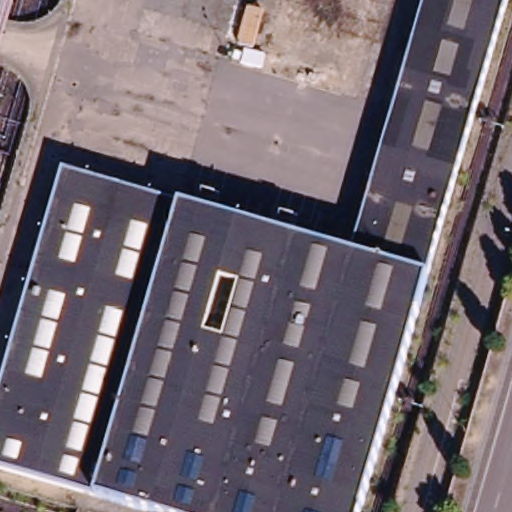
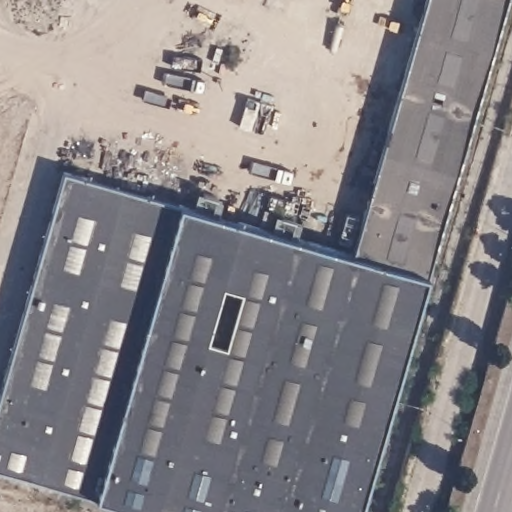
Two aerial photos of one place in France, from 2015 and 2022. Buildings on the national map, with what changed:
unchanged [(428,272),(349,251),(423,0),(509,0),(428,272)]
unchanged [(0,468),(0,392),(58,171),(178,205),(95,495),(0,468)]
unchanged [(428,272),(354,512),(155,512),(95,495),(178,205),(349,251),(428,272)]

